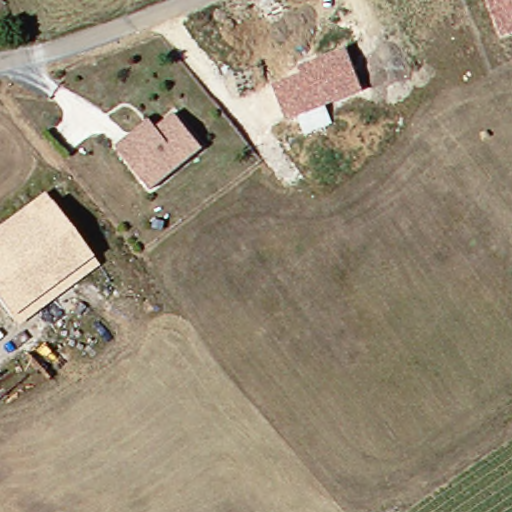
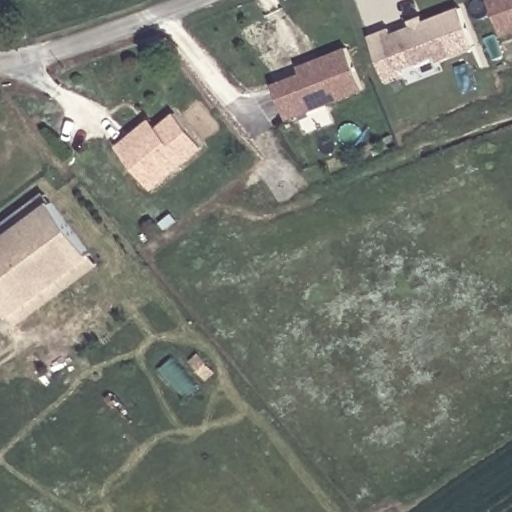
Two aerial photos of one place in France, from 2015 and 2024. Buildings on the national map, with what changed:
unchanged [(502,36),(489,0),(512,0),(512,32),(502,36)]
new [(390,27),(392,34),(460,7),(473,42),(402,70),(404,75),(388,81),(370,35),(390,27)]
unchanged [(364,90),(286,120),(274,85),(302,72),(299,65),(346,46),(364,90)]
unchanged [(149,120),(156,128),(175,112),(204,146),(151,189),(116,146),(131,135),(149,120)]
unchanged [(11,306),(0,293),(0,222),(45,187),(51,195),(91,245),(91,246),(97,254),(18,315),(11,308),(11,306)]

